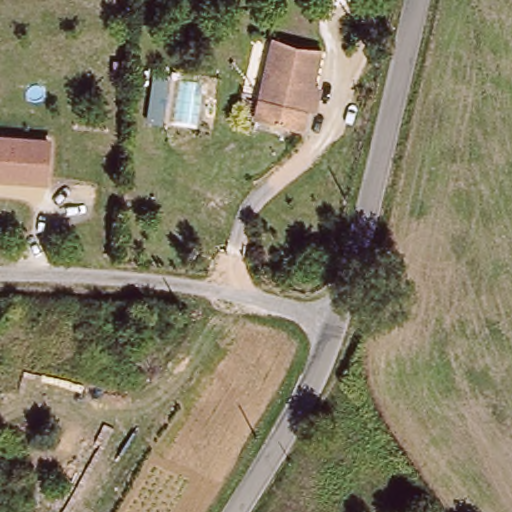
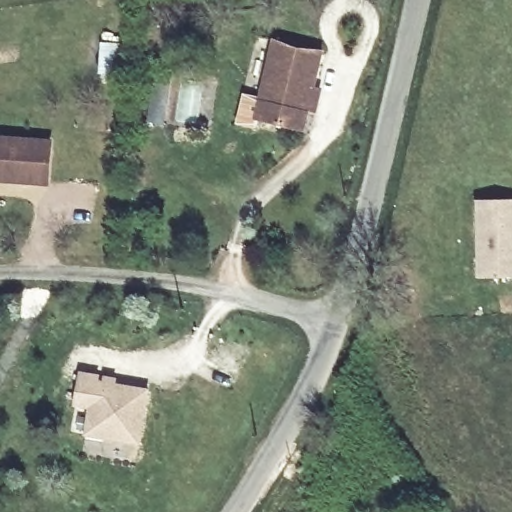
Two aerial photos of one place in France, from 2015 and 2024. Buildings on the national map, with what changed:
unchanged [(262,87),(276,32),(323,42),(303,124),(257,113),(256,120),(237,116),(244,85),(262,87)]
unchanged [(50,139),(47,187),(0,183),(0,135),(50,139)]
new [(512,278),(475,278),(475,201),(512,199),(512,278)]
new [(140,446),(83,436),(87,411),(72,408),(79,371),(117,377),(115,383),(150,389),(140,446)]

